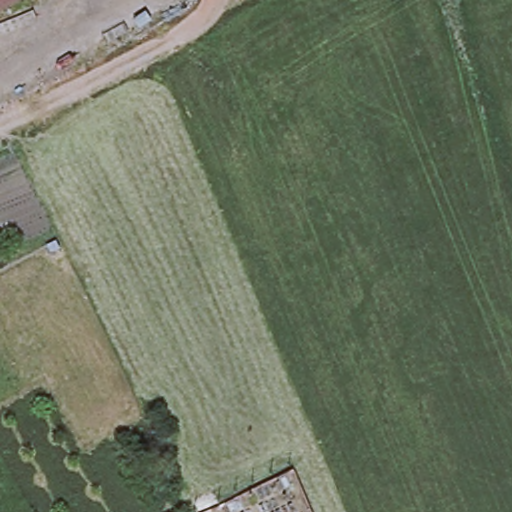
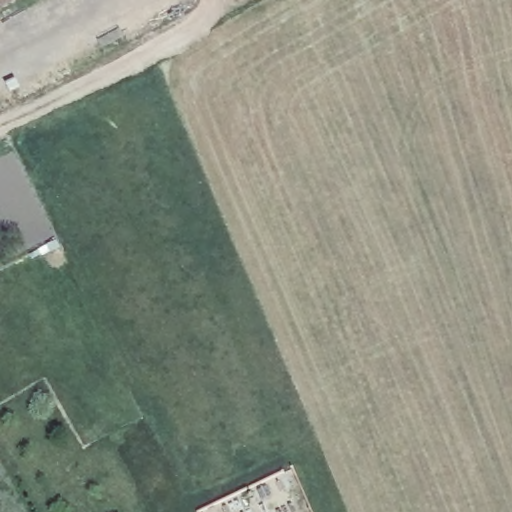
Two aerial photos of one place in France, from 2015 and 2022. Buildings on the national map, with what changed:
unchanged [(0,13),(0,8),(0,0),(26,0),(13,6),(0,13)]

